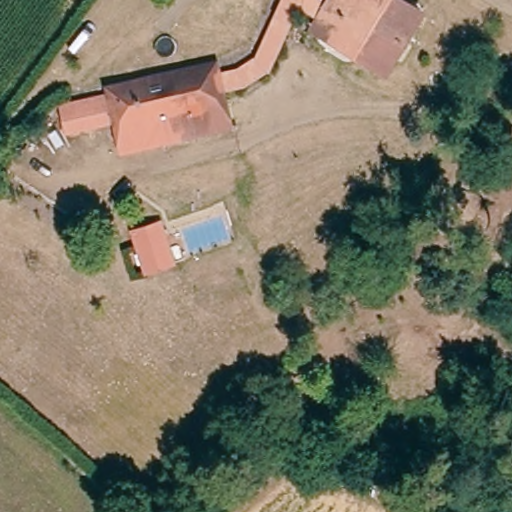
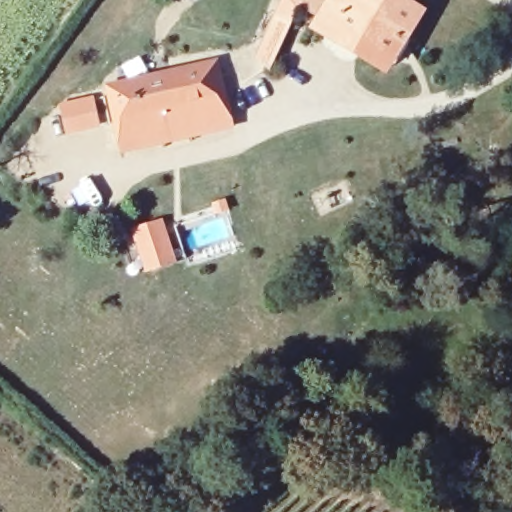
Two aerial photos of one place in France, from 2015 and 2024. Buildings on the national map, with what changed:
unchanged [(68,137),(61,104),(109,95),(107,85),(221,56),(224,67),(243,65),(262,53),(277,20),(282,5),(285,0),(417,0),(431,8),(392,77),(312,32),(319,17),(308,12),(299,12),(291,25),(276,67),(250,83),(230,90),(239,131),(127,156),(118,127),(68,137)]
unchanged [(151,271),(140,226),(165,219),(177,264),(151,271)]

